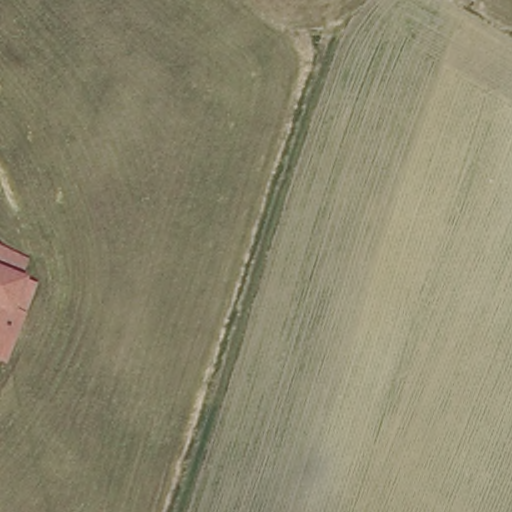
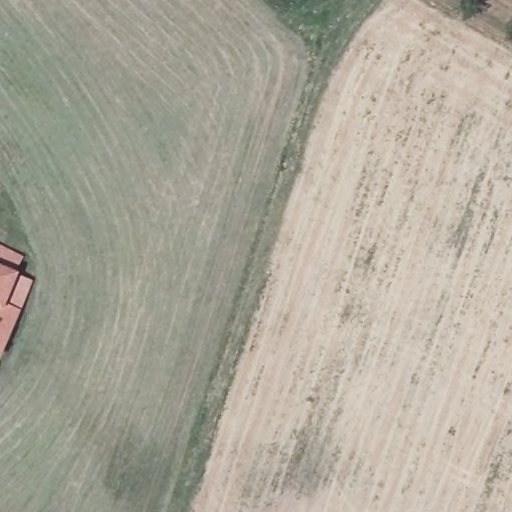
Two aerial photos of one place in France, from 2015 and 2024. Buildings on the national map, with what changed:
unchanged [(0,273),(0,248),(14,256),(9,266),(5,275),(0,273)]
unchanged [(5,275),(26,286),(12,319),(8,326),(0,339),(0,273),(5,275)]

